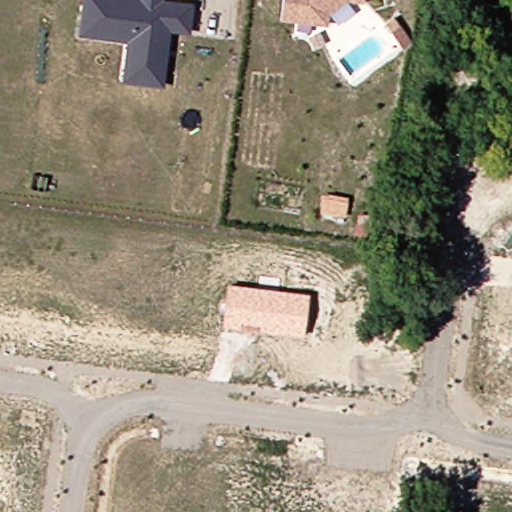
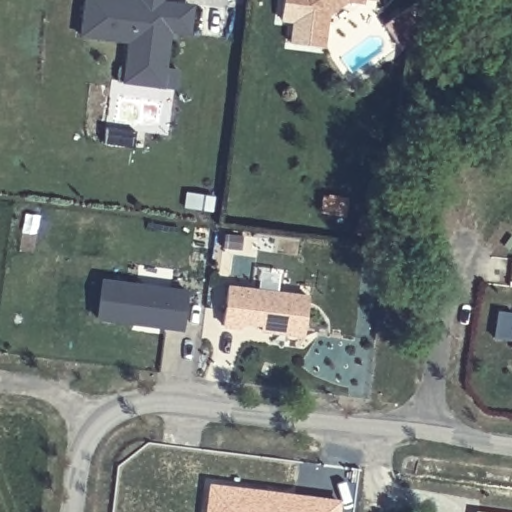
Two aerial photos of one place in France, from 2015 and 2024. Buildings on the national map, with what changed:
unchanged [(194,36),(173,33),(167,89),(123,83),(127,41),(82,36),(85,0),(173,0),(198,4),(194,36)]
unchanged [(349,4),(322,25),(282,22),(286,0),(367,0),(367,4),(349,4)]
new [(188,290),(183,329),(95,319),(101,278),(188,290)]
unchanged [(305,337),(260,332),(260,326),(240,324),(239,329),(222,327),(226,284),(310,294),(305,337)]
new [(208,482),(342,499),(341,512),(205,512),(208,482)]

